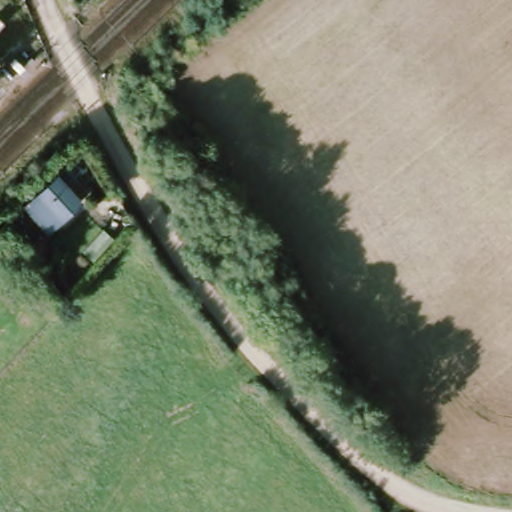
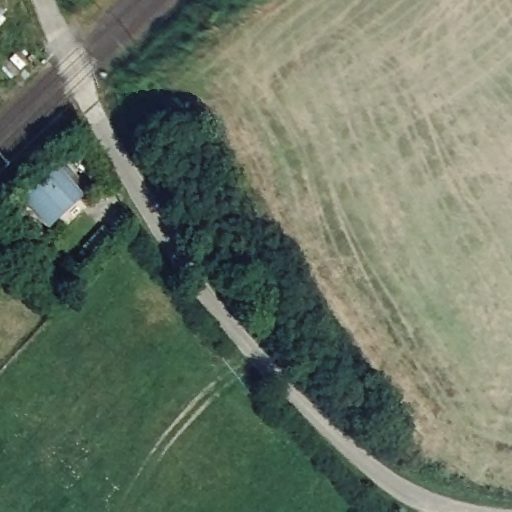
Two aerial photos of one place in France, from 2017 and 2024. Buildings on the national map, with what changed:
unchanged [(16,205),(52,168),(63,180),(85,200),(61,221),(47,236),(16,205)]
unchanged [(116,238),(97,261),(86,252),(104,228),(116,238)]

